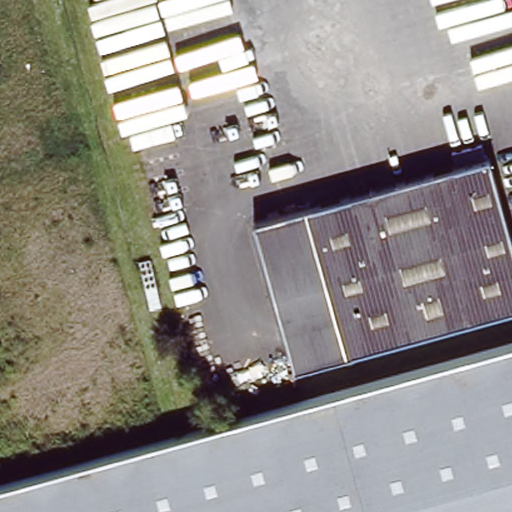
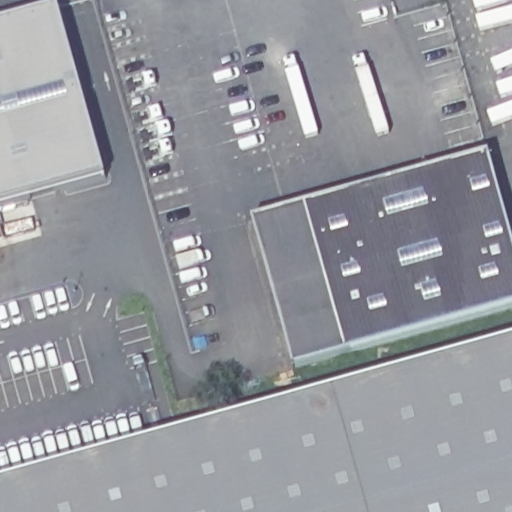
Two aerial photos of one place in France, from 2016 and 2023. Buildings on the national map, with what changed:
new [(107,178),(0,207),(0,24),(60,8),(107,178)]
unchanged [(512,244),(512,307),(351,353),(310,205),(487,155),(512,244)]
unchanged [(310,205),(351,353),(293,369),(252,221),(310,205)]
unchanged [(431,368),(512,345),(512,512),(0,512),(0,487),(33,478),(431,368)]

